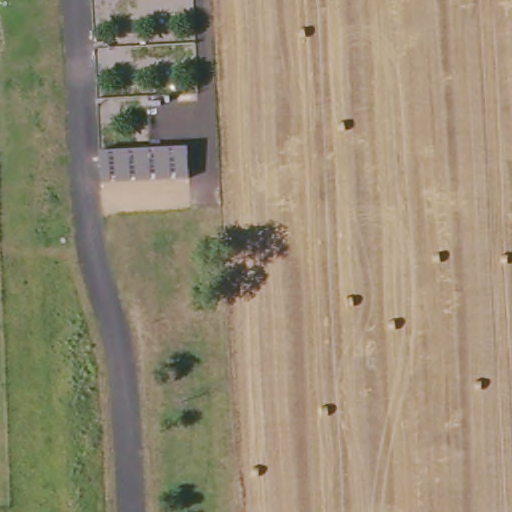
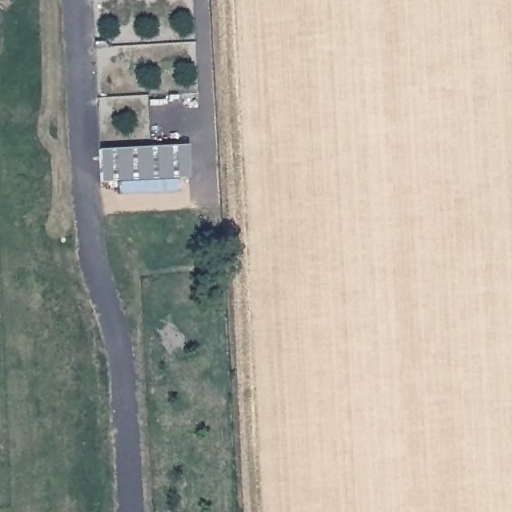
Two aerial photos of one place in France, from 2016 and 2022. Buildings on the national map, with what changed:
unchanged [(190,148),(192,179),(104,186),(102,151),(190,148)]

